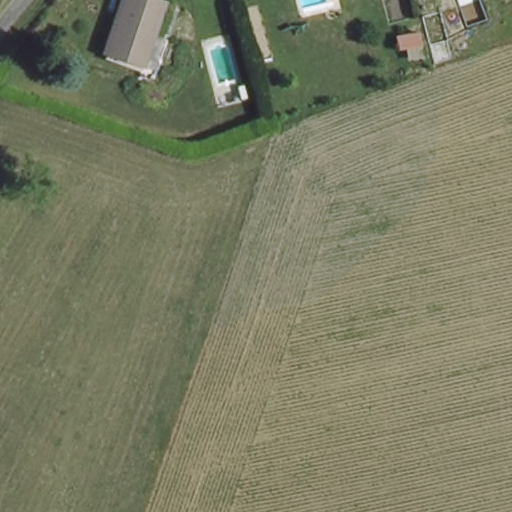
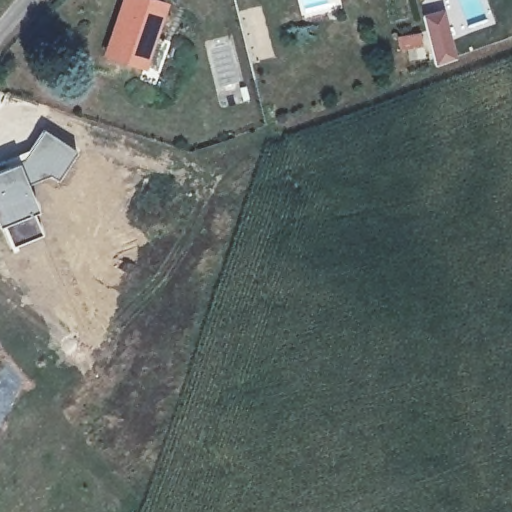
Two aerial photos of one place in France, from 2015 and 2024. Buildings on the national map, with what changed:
unchanged [(143,67),(101,51),(120,0),(155,0),(166,4),(143,67)]
new [(438,4),(445,33),(426,37),(420,8),(438,4)]
new [(25,150),(42,126),(76,149),(56,179),(47,176),(28,182),(17,157),(25,150)]
new [(17,157),(28,182),(38,211),(35,212),(43,234),(11,248),(0,225),(0,165),(17,157)]

